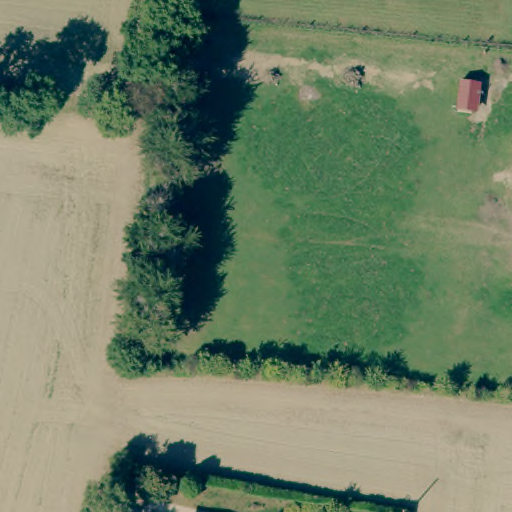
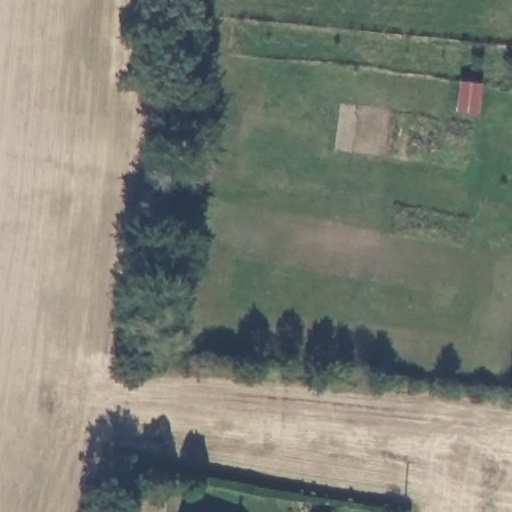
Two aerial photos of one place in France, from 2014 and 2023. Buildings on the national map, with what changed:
unchanged [(458,75),(480,77),(479,93),(457,92),(458,75)]

